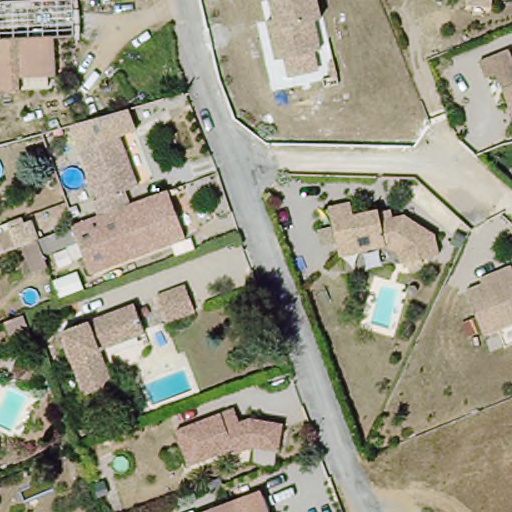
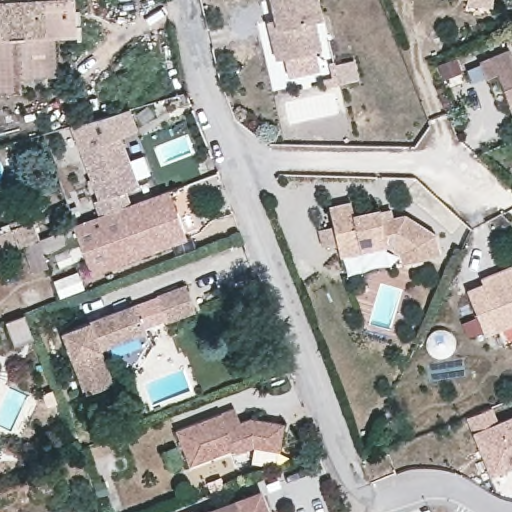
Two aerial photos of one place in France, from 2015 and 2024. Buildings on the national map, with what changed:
unchanged [(75,32),(52,34),(0,38),(0,1),(18,0),(73,0),(75,32)]
unchanged [(273,68),(270,54),(262,23),(270,21),(268,15),(261,17),(256,0),(310,0),(313,11),(306,13),(313,43),(317,58),(273,68)]
unchanged [(490,5),(464,3),(465,0),(490,0),(490,5)]
unchanged [(0,92),(0,38),(52,34),(55,73),(56,88),(22,90),(0,92)]
unchanged [(507,105),(494,74),(484,79),(477,63),(507,50),(512,63),(512,116),(507,105)]
new [(338,84),(335,64),(355,60),(359,80),(338,84)]
unchanged [(93,201),(98,199),(81,151),(121,137),(138,186),(124,191),(129,206),(99,216),(93,201)]
unchanged [(22,244),(33,240),(73,226),(99,216),(129,206),(168,192),(184,238),(90,272),(80,242),(44,255),(48,266),(43,268),(32,272),(22,244)]
unchanged [(388,257),(379,255),(340,264),(338,255),(323,258),(318,239),(333,235),(326,207),(347,201),(350,214),(375,208),(376,213),(385,210),(387,217),(400,213),(432,232),(437,252),(400,261),(390,263),(388,257)]
unchanged [(479,336),(462,292),(478,286),(477,281),(507,269),(509,274),(512,273),(512,324),(479,336)]
unchanged [(163,297),(193,288),(201,314),(171,323),(163,297)]
unchanged [(144,339),(101,356),(109,385),(82,394),(61,333),(132,308),(144,339)]
unchanged [(16,356),(7,330),(30,321),(39,348),(16,356)]
unchanged [(11,389),(14,397),(3,400),(1,393),(0,393),(0,360),(1,359),(11,389)]
new [(490,475),(467,415),(491,405),(497,422),(512,416),(512,466),(490,475)]
unchanged [(237,422),(247,418),(280,423),(276,450),(249,446),(236,451),(234,446),(190,462),(178,427),(232,408),(237,422)]
unchanged [(96,476),(100,488),(88,492),(84,480),(96,476)]
unchanged [(210,490),(223,486),(227,496),(213,501),(210,490)]
unchanged [(212,512),(260,493),(267,512),(212,512)]

